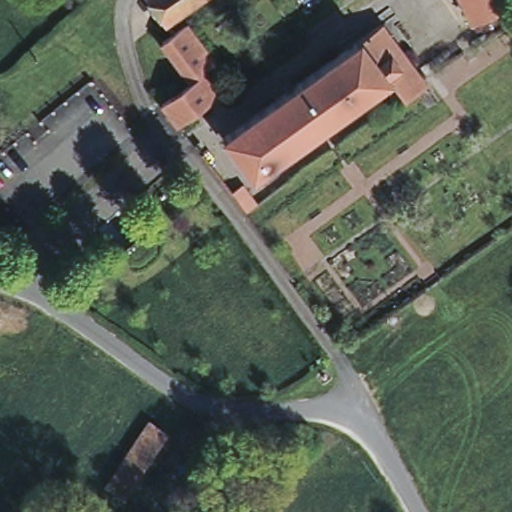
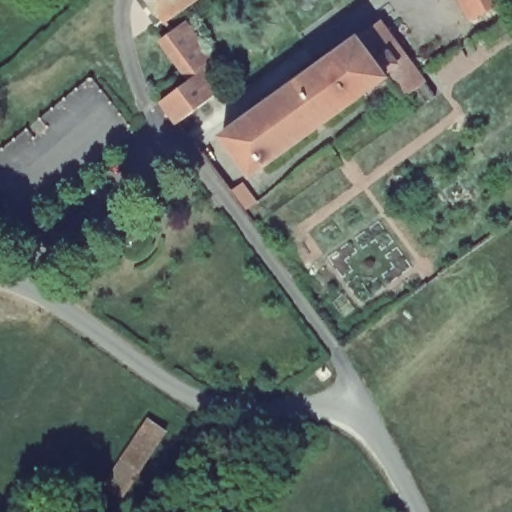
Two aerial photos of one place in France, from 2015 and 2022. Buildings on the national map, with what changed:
unchanged [(149,0),(192,0),(163,20),(149,0)]
unchanged [(506,3),(471,20),(461,0),(505,0),(506,3)]
unchanged [(378,24),(423,83),(404,98),(388,77),(251,176),(223,136),(378,24)]
unchanged [(156,106),(185,84),(156,44),(180,28),(209,67),(199,74),(216,96),(173,129),(156,106)]
unchanged [(123,495),(108,483),(145,430),(151,421),(166,432),(156,446),(123,495)]

